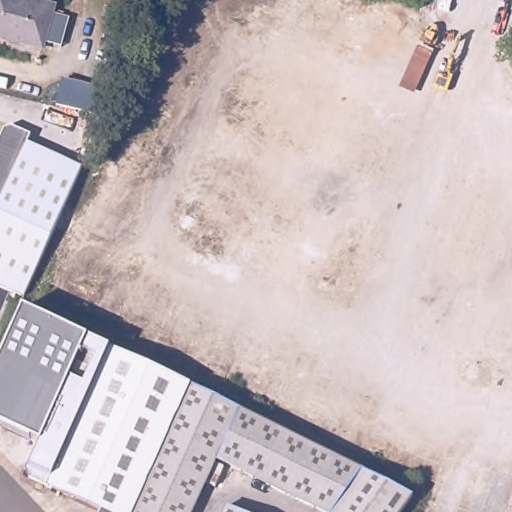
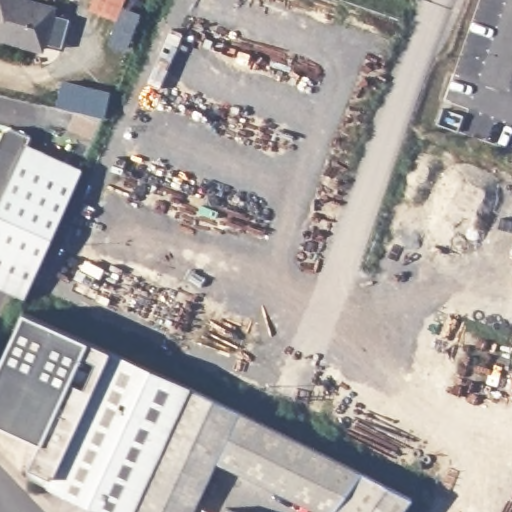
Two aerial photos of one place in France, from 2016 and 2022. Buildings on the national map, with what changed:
unchanged [(29,0),(51,7),(49,13),(67,19),(58,46),(40,41),(38,46),(0,34),(0,0),(29,0)]
new [(54,108),(59,83),(108,93),(103,118),(54,108)]
unchanged [(51,241),(0,216),(0,145),(0,146),(7,131),(14,129),(34,139),(30,148),(84,174),(51,241)]
unchanged [(51,241),(23,300),(0,288),(0,216),(51,241)]
unchanged [(112,348),(87,398),(82,406),(60,396),(39,442),(0,425),(0,362),(23,311),(112,348)]
unchanged [(34,448),(37,447),(39,442),(60,396),(82,406),(87,398),(112,348),(189,386),(130,512),(122,512),(33,470),(27,461),(34,448)]
unchanged [(189,386),(259,419),(375,474),(414,493),(402,512),(329,512),(216,459),(191,512),(130,512),(189,386)]
unchanged [(230,509),(237,512),(229,512),(230,509)]

